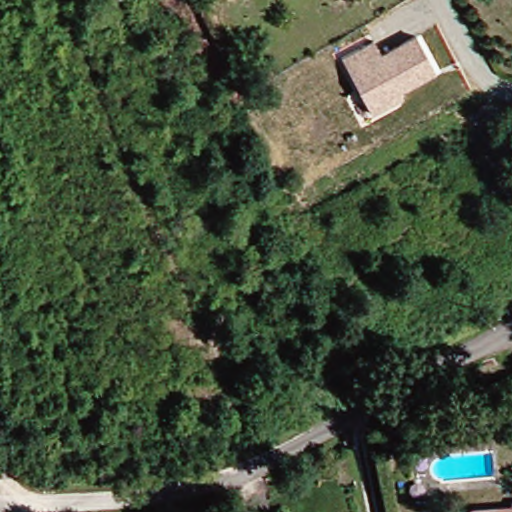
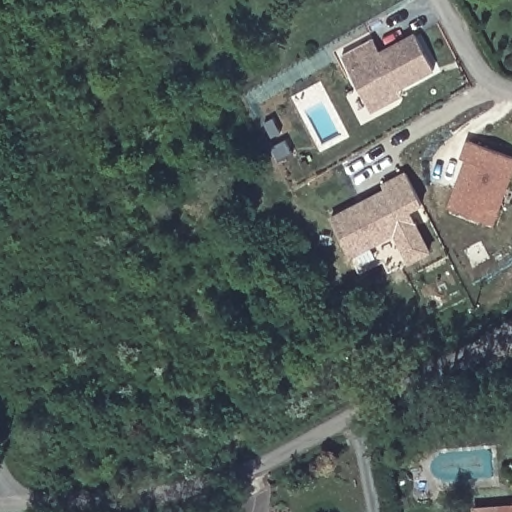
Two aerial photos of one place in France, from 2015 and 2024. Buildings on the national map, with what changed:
unchanged [(341,56),(373,39),(381,53),(416,34),(435,69),(393,91),(397,98),(371,112),(371,111),(341,56)]
new [(498,227),(453,212),(470,162),(465,160),(471,142),(512,156),(512,185),(498,227)]
new [(408,175),(425,207),(411,214),(434,255),(416,264),(401,236),(352,262),(331,223),(362,207),(387,193),(384,188),(408,175)]
unchanged [(475,510),(512,507),(512,512),(475,512),(475,510)]

